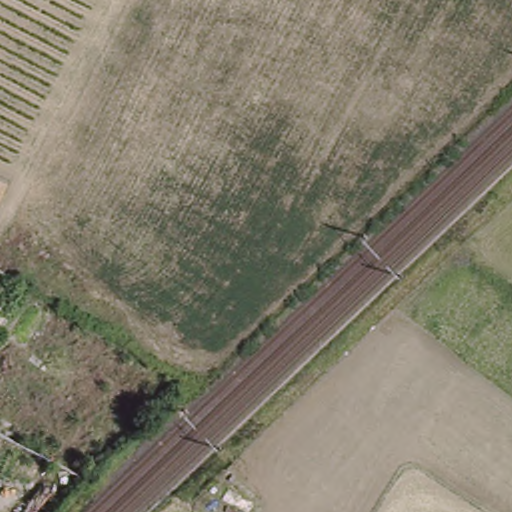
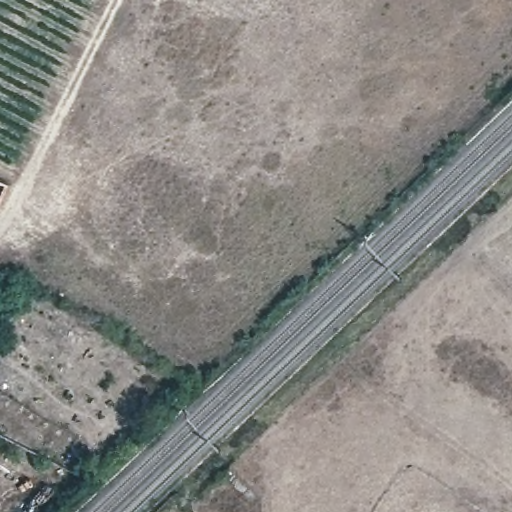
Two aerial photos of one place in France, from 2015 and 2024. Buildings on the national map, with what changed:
unchanged [(0,188),(0,183),(2,184),(0,188)]

